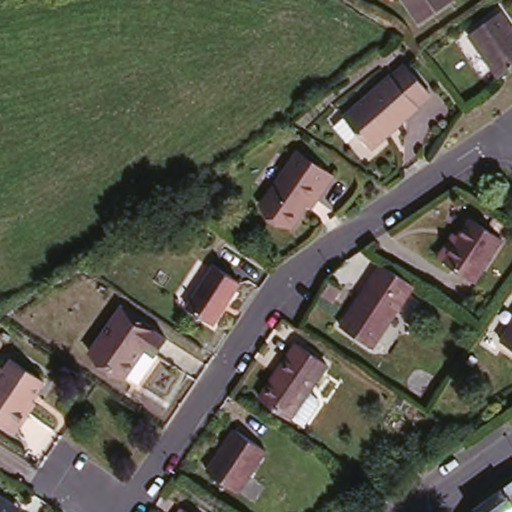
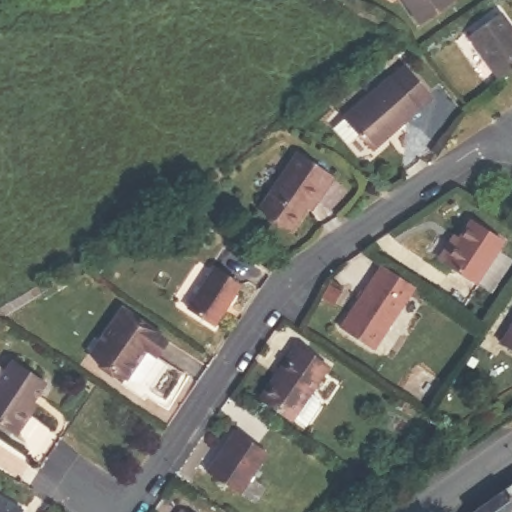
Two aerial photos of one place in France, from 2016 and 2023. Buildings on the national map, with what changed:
unchanged [(406,0),(445,0),(419,18),(406,0)]
unchanged [(512,62),(499,72),(468,30),(500,7),(512,24),(512,62)]
unchanged [(427,82),(415,96),(416,99),(372,139),(356,122),(349,129),(335,114),(342,107),(387,66),(389,67),(403,55),(427,82)]
unchanged [(310,205),(305,202),(290,222),(258,200),(295,147),(331,172),(320,187),(320,188),(310,205)]
unchanged [(501,239),(475,280),(442,260),(437,257),(451,234),(457,236),(470,218),(501,239)]
unchanged [(418,275),(376,338),(344,317),(386,254),(418,275)]
unchanged [(238,275),(211,314),(185,297),(212,257),(238,275)]
unchanged [(138,378),(125,370),(124,371),(89,347),(120,303),(165,333),(153,350),(155,352),(138,378)]
unchanged [(512,327),(512,340),(506,336),(512,327)]
unchanged [(326,360),(290,413),(258,392),(295,338),(326,360)]
unchanged [(31,415),(20,432),(0,419),(0,365),(9,371),(15,360),(47,381),(36,400),(39,404),(31,415)]
unchanged [(266,450),(239,492),(206,470),(235,429),(266,450)]
unchanged [(465,507),(512,474),(512,501),(499,510),(500,512),(469,512),(465,507)]
unchanged [(11,492),(21,498),(17,505),(28,512),(0,512),(0,485),(11,492)]
unchanged [(194,512),(176,512),(182,503),(194,512)]

